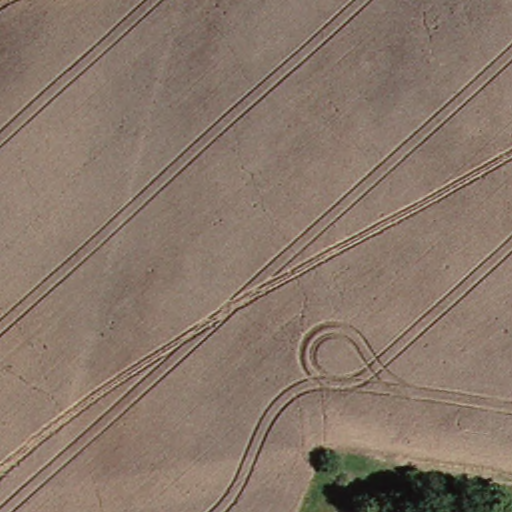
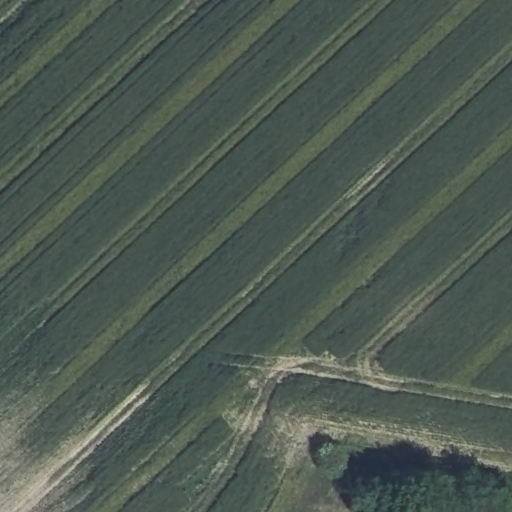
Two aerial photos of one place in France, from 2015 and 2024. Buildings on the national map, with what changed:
[]

